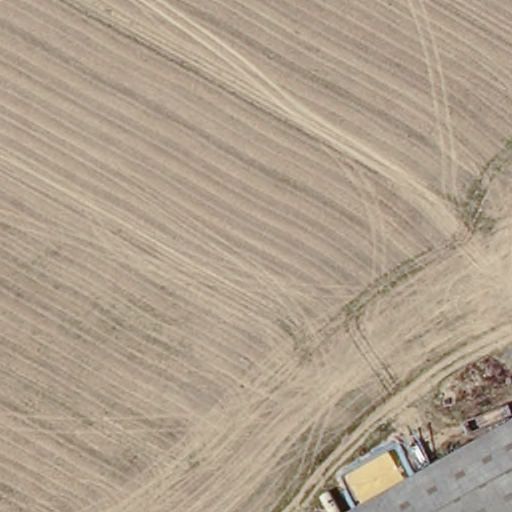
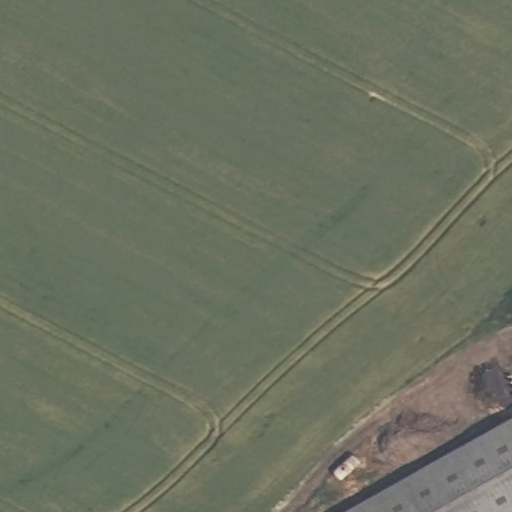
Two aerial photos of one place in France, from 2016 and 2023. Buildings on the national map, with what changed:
unchanged [(512,426),(512,512),(360,512),(512,426)]

